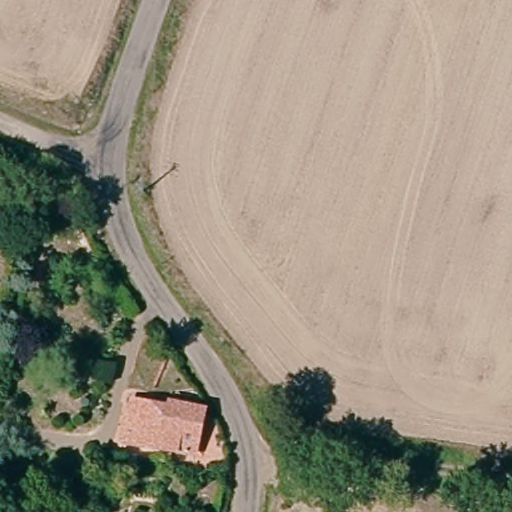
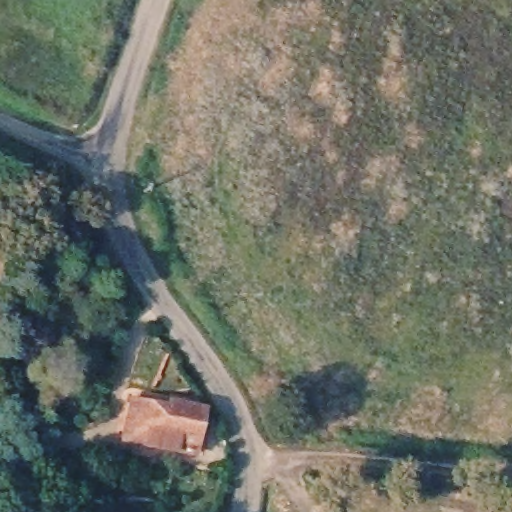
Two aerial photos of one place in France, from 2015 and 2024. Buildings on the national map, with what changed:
unchanged [(124,438),(133,401),(149,405),(150,401),(162,403),(202,412),(193,452),(147,443),(124,438)]

